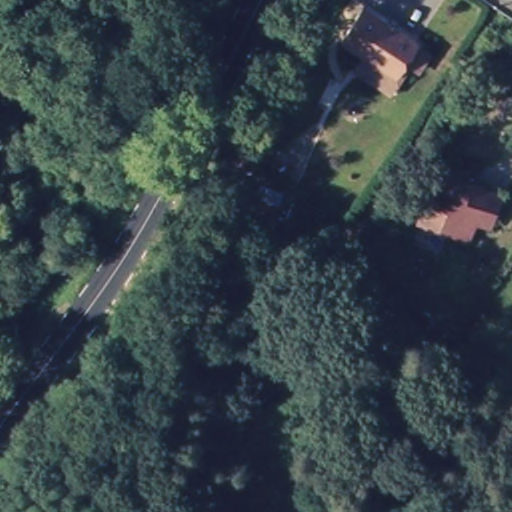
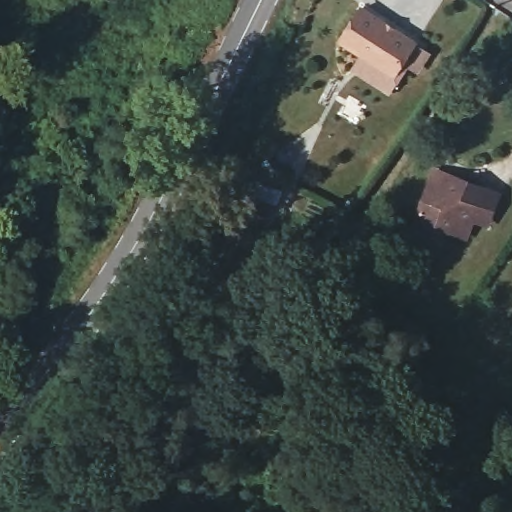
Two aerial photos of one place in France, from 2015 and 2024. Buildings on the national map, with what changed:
unchanged [(354,40),(335,25),(354,0),(367,0),(408,33),(385,64),(354,40)]
unchanged [(421,42),(407,60),(400,54),(380,80),(345,52),(354,40),(385,64),(408,33),(421,42)]
unchanged [(487,222),(472,216),(465,233),(416,215),(434,166),(484,184),(500,190),(487,222)]

